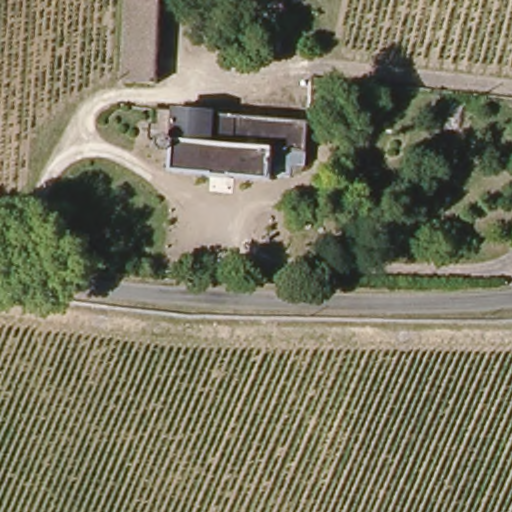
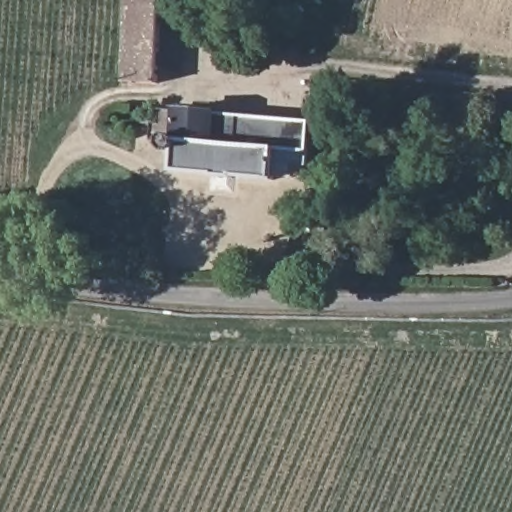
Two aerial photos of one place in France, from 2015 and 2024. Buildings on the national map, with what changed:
unchanged [(126,53),(127,0),(160,0),(160,53),(126,53)]
unchanged [(313,120),(311,154),(300,154),(300,163),(295,167),(295,182),(178,172),(181,140),(175,140),(175,147),(160,145),(159,138),(150,137),(152,116),(159,116),(160,105),(313,120)]

